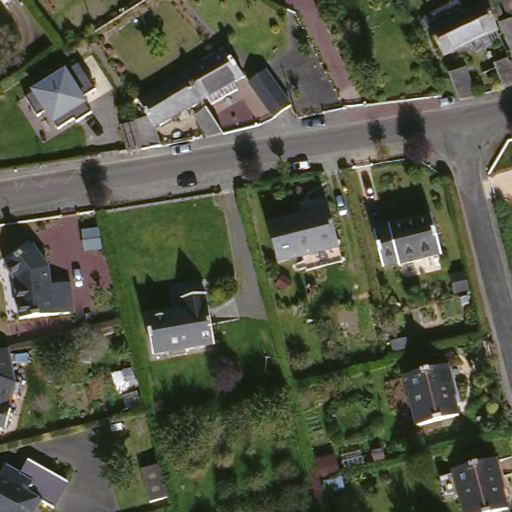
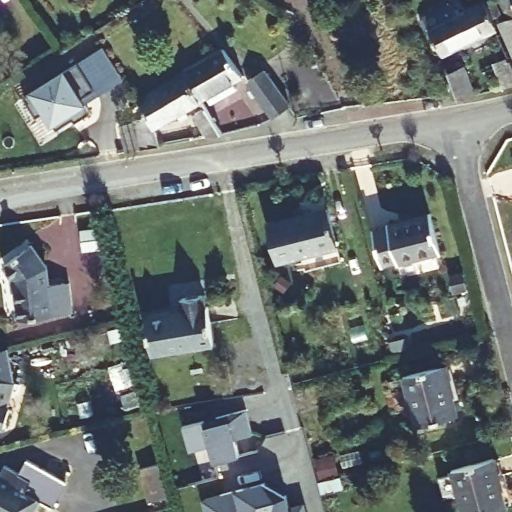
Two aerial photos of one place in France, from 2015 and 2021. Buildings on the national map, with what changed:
unchanged [(512,0),(512,20),(504,0),(512,0)]
unchanged [(476,55),(472,46),(448,57),(428,19),(461,1),(467,10),(487,1),(501,31),(505,40),(476,55)]
unchanged [(512,20),(512,30),(507,22),(512,20)]
unchanged [(247,75),(234,83),(237,88),(219,102),(214,96),(199,105),(181,78),(227,51),(247,75)]
unchanged [(84,98),(92,112),(76,124),(74,121),(57,131),(45,115),(37,120),(24,101),(33,95),(32,92),(68,70),(70,72),(105,52),(118,79),(84,98)]
unchanged [(512,60),(512,85),(506,87),(495,64),(511,57),(512,60)]
unchanged [(481,95),(467,99),(460,100),(453,87),(448,76),(466,67),(481,95)]
unchanged [(292,105),(278,117),(251,86),(264,74),(292,105)]
unchanged [(181,78),(199,105),(225,140),(213,143),(199,122),(193,112),(157,132),(164,152),(147,155),(137,127),(147,119),(139,102),(181,78)]
unchanged [(339,211),(348,251),(286,265),(277,226),(339,211)]
unchanged [(431,215),(441,253),(385,267),(376,234),(390,230),(390,226),(431,215)]
unchanged [(102,230),(107,249),(92,252),(87,234),(102,230)]
unchanged [(40,250),(59,271),(61,286),(76,285),(83,313),(31,321),(27,293),(14,270),(40,250)]
unchanged [(195,306),(193,293),(214,288),(217,302),(220,301),(228,340),(168,355),(159,314),(195,306)]
unchanged [(8,347),(37,341),(27,381),(0,374),(0,350),(8,347)]
unchanged [(446,366),(459,416),(420,425),(406,376),(446,366)]
unchanged [(27,381),(22,400),(15,398),(12,411),(19,413),(15,428),(0,425),(0,374),(27,381)]
new [(219,420),(248,412),(255,437),(238,441),(242,458),(217,465),(213,448),(192,454),(185,430),(207,423),(219,420)]
unchanged [(70,474),(56,505),(47,501),(41,512),(0,512),(0,492),(2,489),(0,488),(0,485),(7,468),(30,478),(40,460),(70,474)]
unchanged [(512,498),(512,511),(510,512),(471,512),(461,472),(502,462),(512,498)]
new [(267,485),(288,498),(292,511),(305,508),(306,512),(209,512),(206,502),(222,498),(267,485)]

